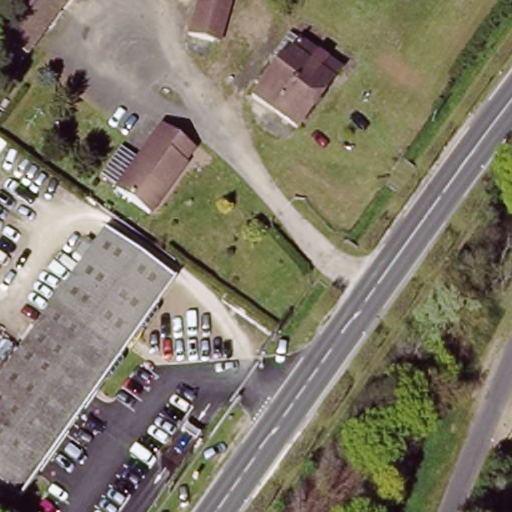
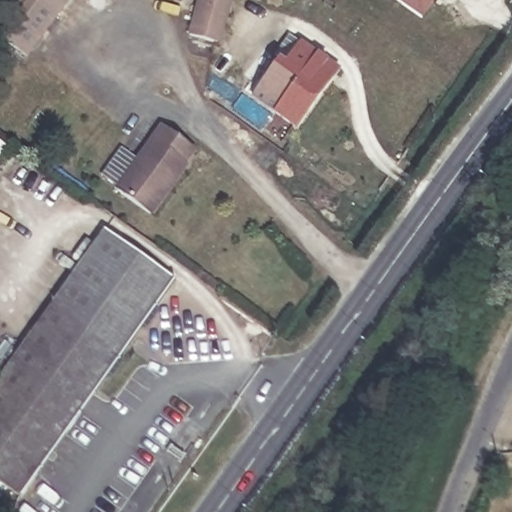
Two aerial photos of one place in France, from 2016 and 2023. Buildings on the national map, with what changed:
unchanged [(25,52),(0,33),(6,0),(67,0),(25,52)]
unchanged [(192,0),(229,0),(218,42),(183,31),(192,0)]
new [(420,20),(391,0),(434,0),(420,20)]
unchanged [(297,126),(252,92),(278,54),(275,50),(288,32),(301,42),(338,70),(297,126)]
unchanged [(192,143),(182,158),(185,160),(151,211),(115,187),(158,121),(192,143)]
unchanged [(98,235),(166,285),(12,493),(0,484),(0,368),(98,235)]

